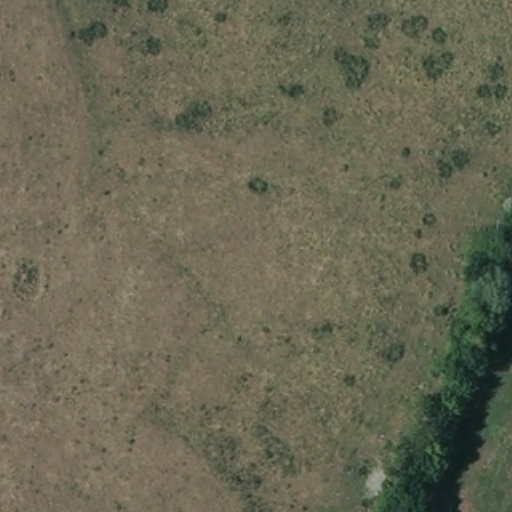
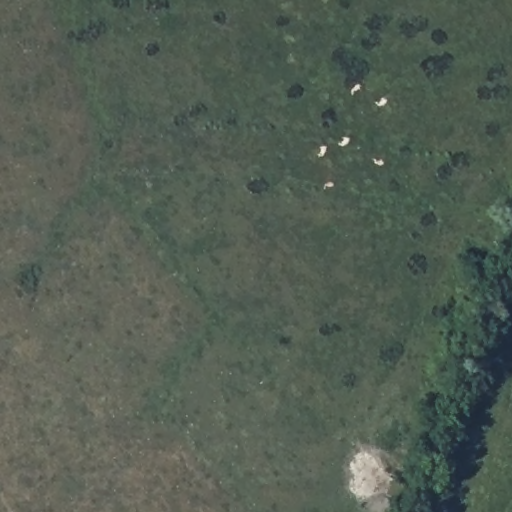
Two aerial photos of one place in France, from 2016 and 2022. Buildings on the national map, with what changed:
[]

